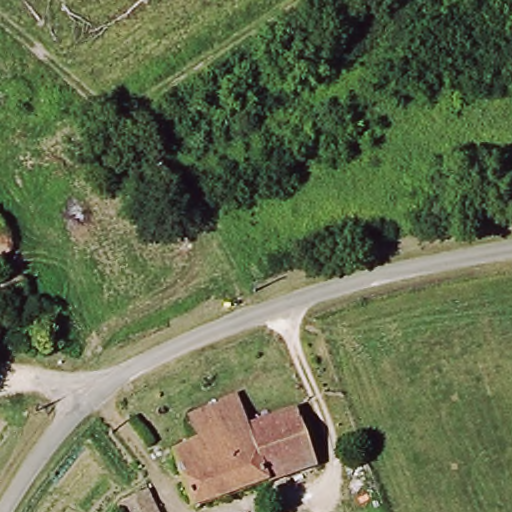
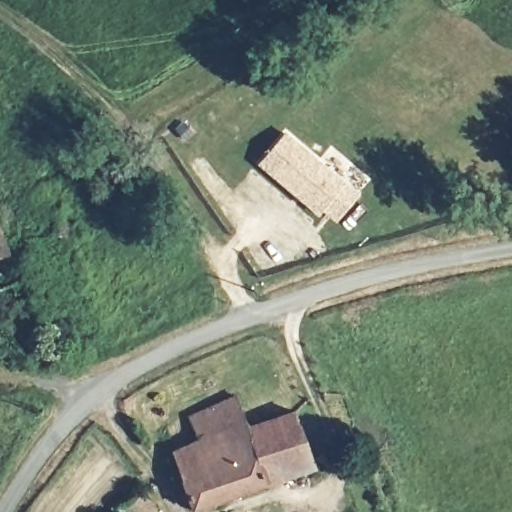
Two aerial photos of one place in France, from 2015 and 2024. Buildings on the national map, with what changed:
new [(258,165),(286,132),(360,194),(336,222),(320,211),(318,214),(258,165)]
unchanged [(0,253),(0,237),(5,251),(0,253)]
unchanged [(164,447),(193,435),(184,412),(230,392),(245,425),(287,407),(310,462),(193,511),(164,447)]
unchanged [(151,512),(141,512),(150,508),(151,512)]

